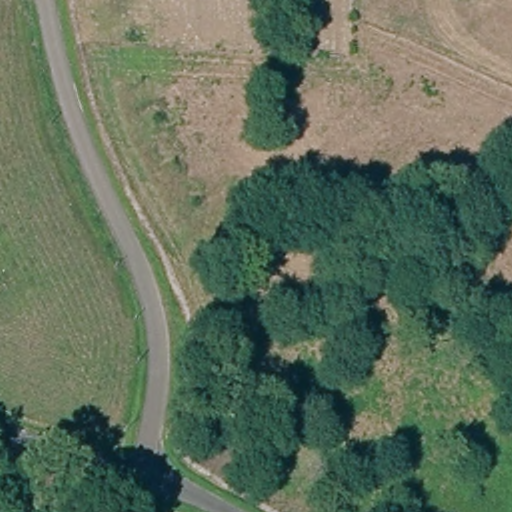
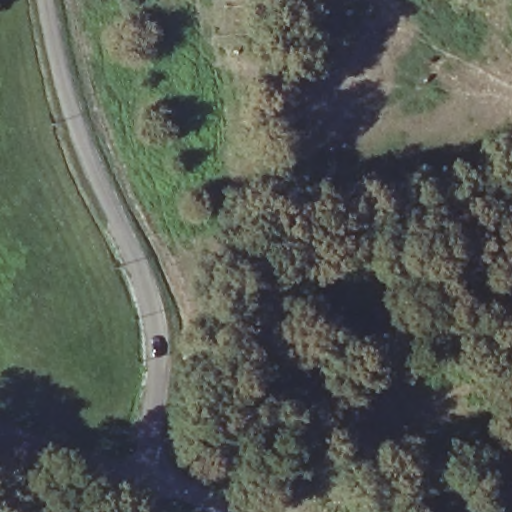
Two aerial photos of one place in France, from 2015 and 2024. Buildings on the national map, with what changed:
[]

